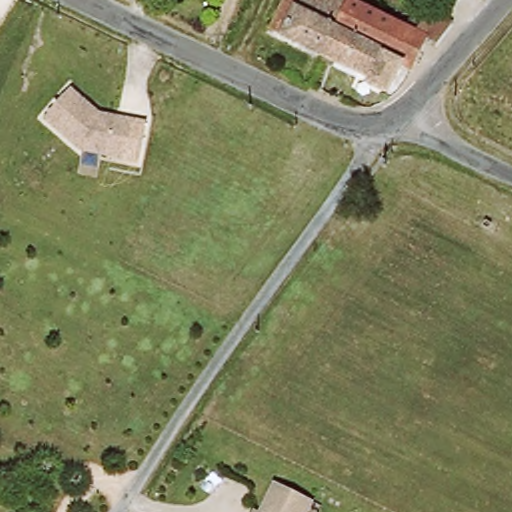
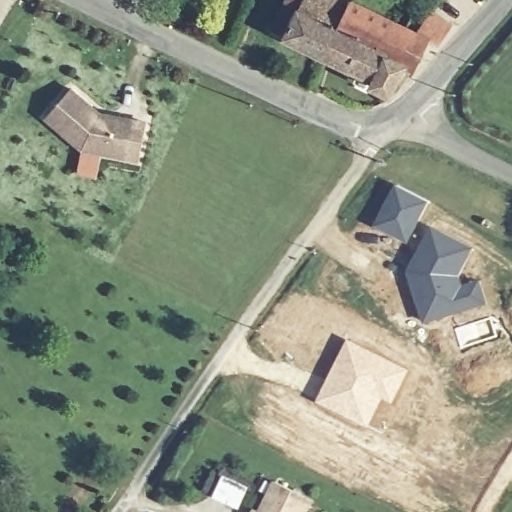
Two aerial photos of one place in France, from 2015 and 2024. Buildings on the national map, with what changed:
unchanged [(267,26),(281,0),(301,0),(283,33),(267,26)]
unchanged [(355,1),(328,55),(283,33),(301,0),(352,0),(355,1)]
unchanged [(417,18),(426,23),(433,10),(454,22),(438,45),(427,38),(413,65),(405,62),(390,91),(375,84),(375,78),(328,55),(355,1),(410,29),(417,18)]
unchanged [(75,87),(104,112),(137,119),(130,151),(130,156),(86,147),(49,115),(51,113),(75,87)]
new [(395,184),(430,201),(408,244),(372,228),(395,184)]
new [(430,225),(475,246),(462,274),(465,282),(480,278),(488,303),(423,325),(406,272),(430,225)]
new [(346,338),(410,368),(393,404),(383,399),(368,427),(315,401),(346,338)]
unchanged [(313,499),(307,512),(260,512),(275,481),(313,499)]

